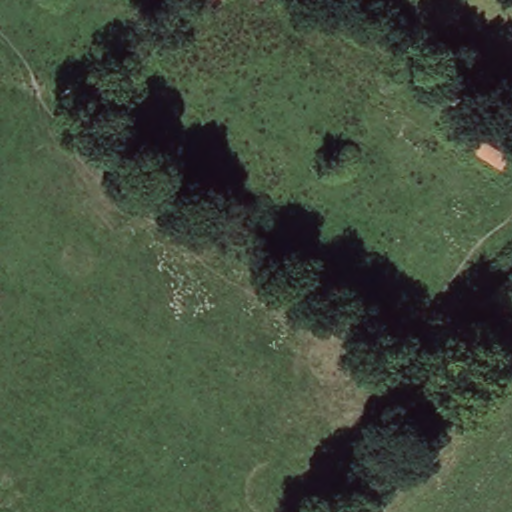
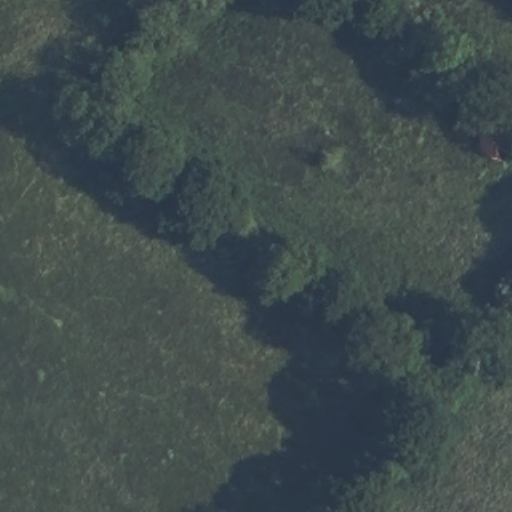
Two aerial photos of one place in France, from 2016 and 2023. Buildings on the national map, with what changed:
unchanged [(211,11),(198,0),(220,0),(211,11)]
unchanged [(265,7),(256,0),(271,0),(265,7)]
unchanged [(512,139),(512,147),(501,162),(449,128),(461,104),(512,139)]

